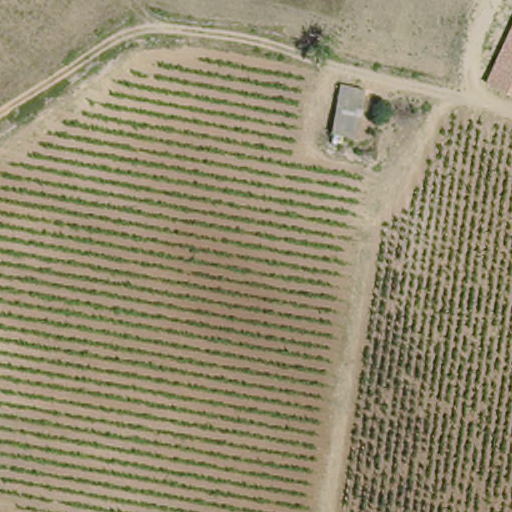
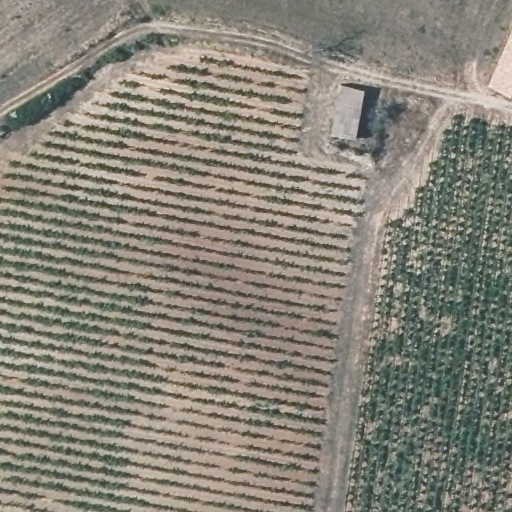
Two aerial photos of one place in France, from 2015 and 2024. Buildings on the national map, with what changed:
unchanged [(483,88),(512,23),(512,101),(483,88)]
unchanged [(327,140),(332,107),(357,110),(355,152),(327,140)]

